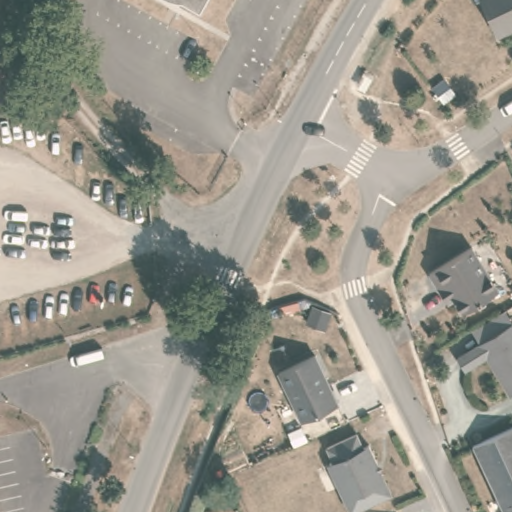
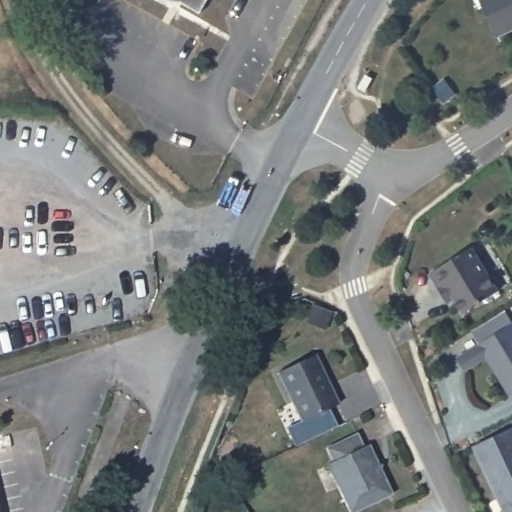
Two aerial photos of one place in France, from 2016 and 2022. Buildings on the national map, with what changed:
unchanged [(181,11),(184,5),(175,0),(160,5),(151,0),(209,0),(200,20),(181,11)]
unchanged [(496,35),(479,0),(512,0),(512,27),(496,35)]
unchanged [(476,246),(497,295),(460,311),(445,280),(438,283),(430,266),(476,246)]
unchanged [(506,395),(487,355),(465,365),(458,350),(480,340),(512,325),(512,393),(506,395)]
unchanged [(314,355),(338,403),(301,420),(278,372),(314,355)]
unchanged [(471,446),(512,427),(512,512),(503,512),(471,446)]
unchanged [(356,434),(363,448),(370,445),(379,463),(375,465),(390,495),(355,512),(350,512),(337,487),(341,486),(330,463),(333,461),(326,448),(356,434)]

